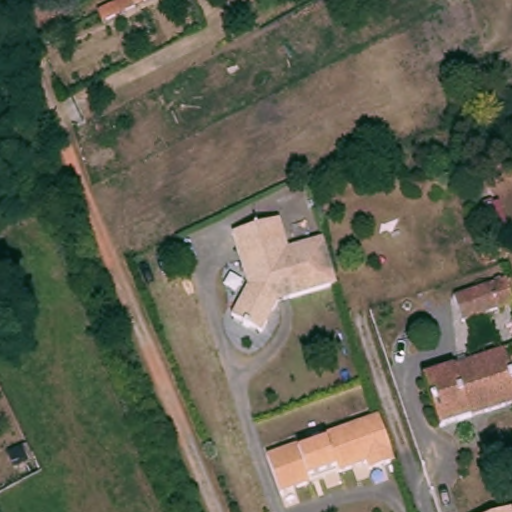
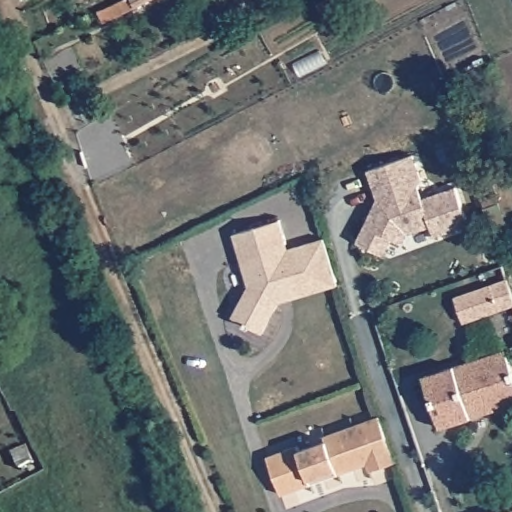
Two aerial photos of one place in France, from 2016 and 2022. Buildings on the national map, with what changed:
unchanged [(126,0),(152,0),(140,6),(140,7),(108,22),(103,11),(115,5),(126,0)]
new [(378,200),(367,170),(412,154),(421,177),(420,186),(425,199),(457,187),(469,224),(435,235),(432,225),(410,232),(404,243),(393,237),(385,254),(358,241),(378,200)]
unchanged [(286,250),(323,240),(335,286),(275,303),(258,330),(230,317),(246,287),(229,235),(278,220),(286,250)]
unchanged [(512,278),(512,307),(469,321),(460,296),(512,278)]
unchanged [(446,427),(429,376),(510,349),(512,355),(512,405),(446,427)]
unchanged [(372,468),(369,460),(340,470),(338,465),(335,466),(312,475),(313,480),(289,487),(283,490),(270,451),(278,449),(301,441),(302,446),(325,438),(329,437),(327,432),(383,414),(399,459),(372,468)]
unchanged [(497,512),(512,508),(512,512),(497,512)]

